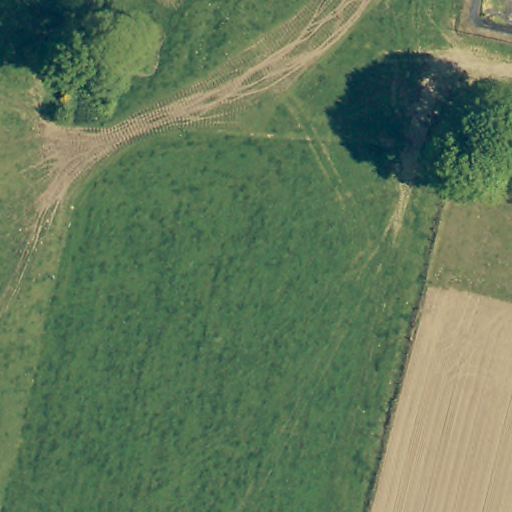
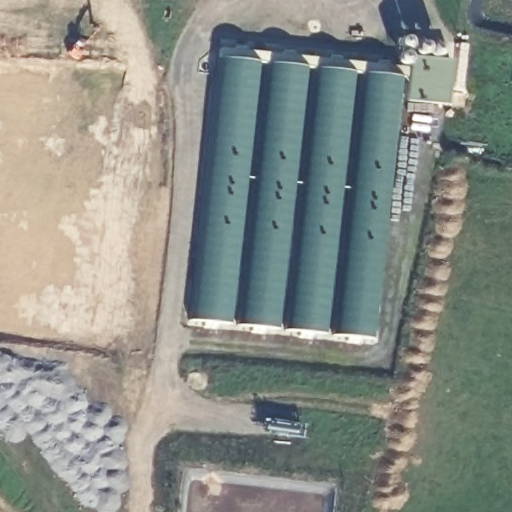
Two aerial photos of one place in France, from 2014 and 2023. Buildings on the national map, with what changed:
new [(225,58),(222,47),(411,66),(412,56),(451,60),(447,103),(403,97),(379,337),(193,319),(225,58)]

